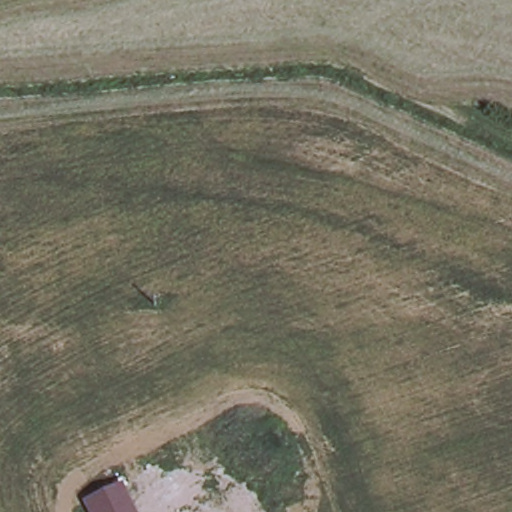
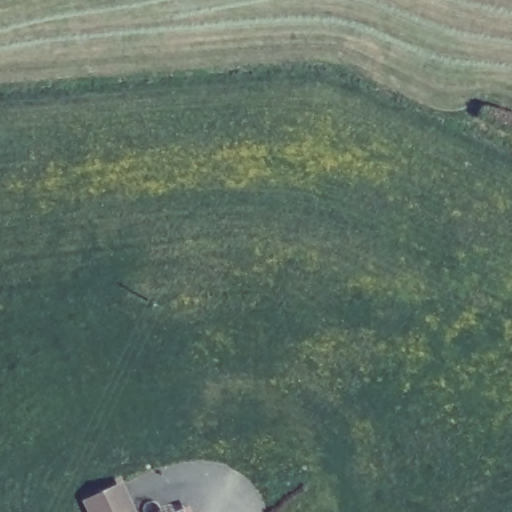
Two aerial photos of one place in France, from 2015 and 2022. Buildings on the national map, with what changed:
unchanged [(138,512),(88,512),(82,501),(123,482),(138,512)]

